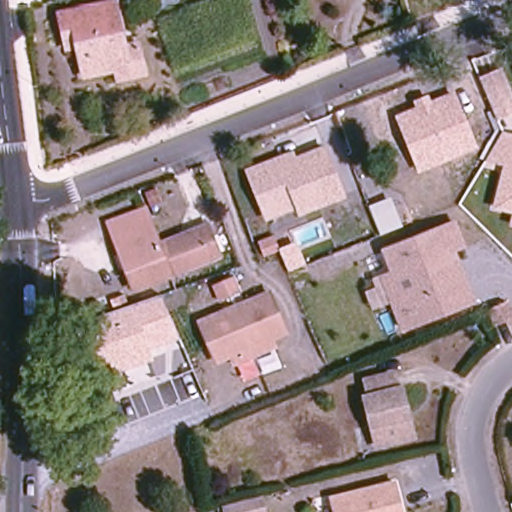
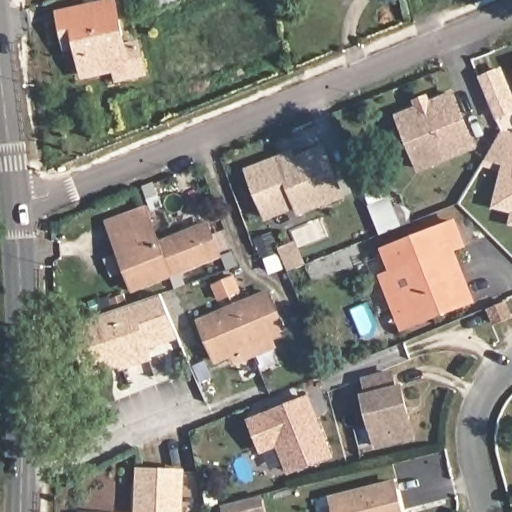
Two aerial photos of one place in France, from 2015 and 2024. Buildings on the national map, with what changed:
unchanged [(136,41),(142,71),(117,78),(115,66),(82,75),(75,45),(65,47),(57,13),(67,11),(112,1),(123,44),(136,41)]
unchanged [(478,78),(503,68),(512,90),(512,114),(495,120),(478,78)]
unchanged [(417,173),(395,114),(415,106),(413,100),(428,94),(430,101),(455,91),(478,148),(417,173)]
unchanged [(512,228),(508,227),(511,214),(492,209),(503,165),(485,161),(501,131),(512,134),(512,228)]
unchanged [(301,217),(297,212),(267,225),(242,169),(291,149),(295,156),(323,144),(347,199),(301,217)]
new [(390,200),(400,227),(383,233),(373,207),(390,200)]
unchanged [(132,286),(108,222),(145,208),(159,244),(195,230),(200,228),(203,237),(211,257),(132,286)]
unchanged [(466,248),(456,252),(476,302),(401,331),(378,274),(388,270),(380,248),(456,219),(466,248)]
unchanged [(218,298),(212,283),(232,275),(239,290),(218,298)]
unchanged [(234,361),(230,351),(215,358),(205,334),(200,319),(266,291),(278,318),(283,329),(280,330),(268,335),(272,345),(234,361)]
unchanged [(150,350),(154,361),(99,380),(76,324),(161,293),(180,338),(150,350)]
unchanged [(510,309),(491,318),(483,302),(503,293),(510,309)]
unchanged [(391,389),(400,387),(411,437),(374,446),(362,395),(366,394),(363,378),(387,373),(391,389)]
new [(315,411),(318,420),(332,455),(291,471),(280,443),(263,450),(251,421),(309,397),(315,411)]
new [(135,512),(137,467),(185,470),(183,512),(135,512)]
unchanged [(335,512),(331,497),(393,482),(400,512),(335,512)]
unchanged [(261,512),(222,512),(221,510),(258,501),(261,512)]

